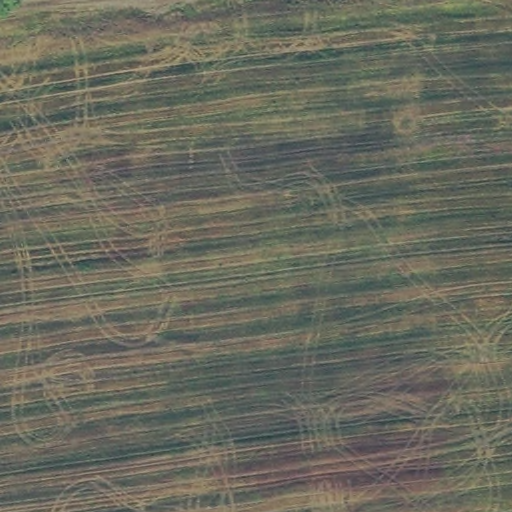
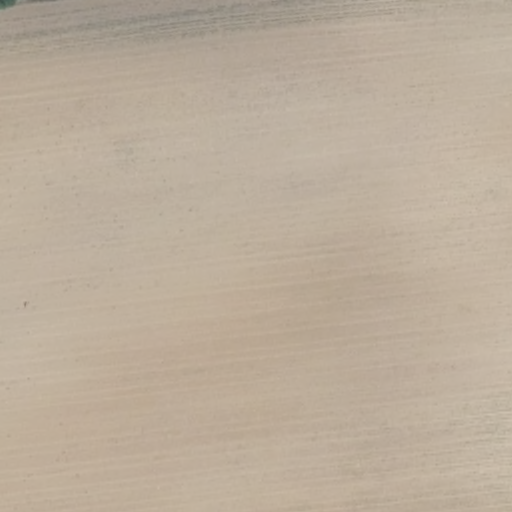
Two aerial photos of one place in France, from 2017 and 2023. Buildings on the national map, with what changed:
[]

